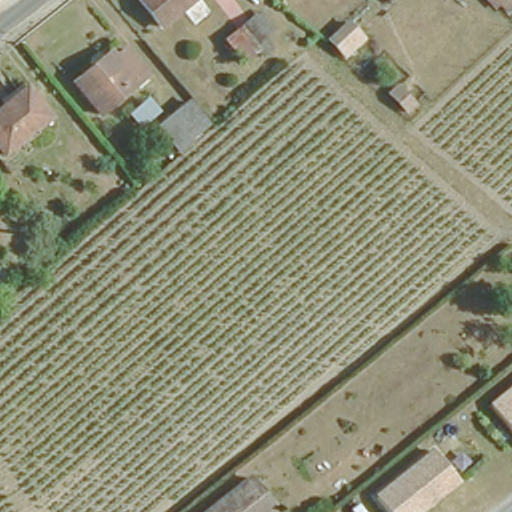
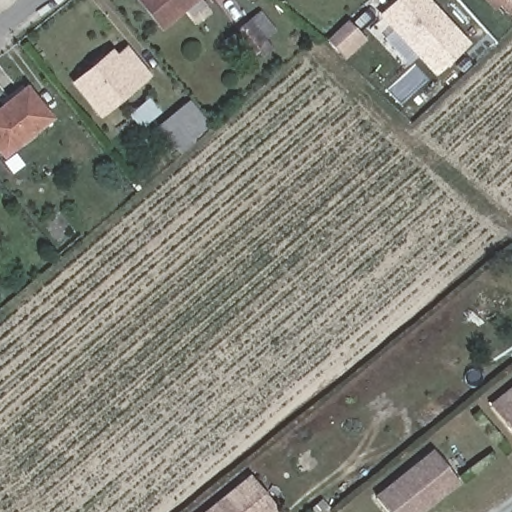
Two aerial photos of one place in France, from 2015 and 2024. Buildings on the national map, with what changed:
unchanged [(160,18),(146,0),(183,0),(160,18)]
new [(471,44),(437,77),(377,15),(394,0),(429,0),(471,44)]
unchanged [(504,15),(496,6),(492,10),(483,0),(512,0),(512,9),(504,15)]
unchanged [(346,60),(326,40),(346,19),(366,40),(346,60)]
unchanged [(271,48),(260,57),(237,28),(249,20),(271,48)]
unchanged [(149,70),(103,106),(77,72),(112,44),(116,48),(126,40),(149,70)]
unchanged [(407,115),(385,93),(396,83),(417,104),(407,115)]
unchanged [(1,149),(0,148),(0,105),(23,87),(45,114),(1,149)]
unchanged [(125,113),(147,94),(161,111),(139,129),(125,113)]
unchanged [(207,128),(191,140),(189,138),(176,149),(159,126),(188,103),(207,128)]
unchanged [(512,385),(512,434),(488,404),(512,385)]
unchanged [(387,512),(373,494),(430,449),(457,484),(423,512),(387,512)]
unchanged [(263,512),(199,512),(247,473),(272,504),(263,512)]
unchanged [(321,498),(332,512),(306,512),(305,511),(321,498)]

